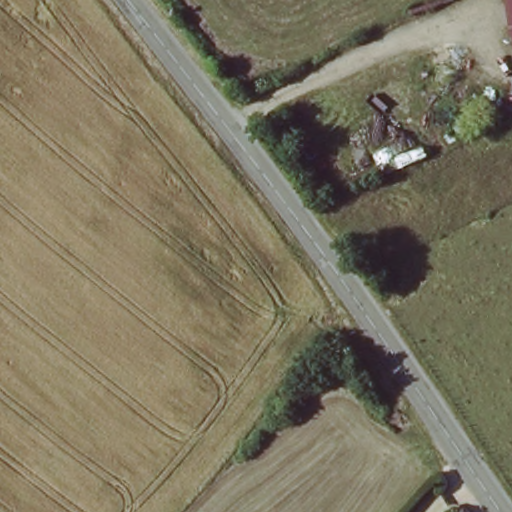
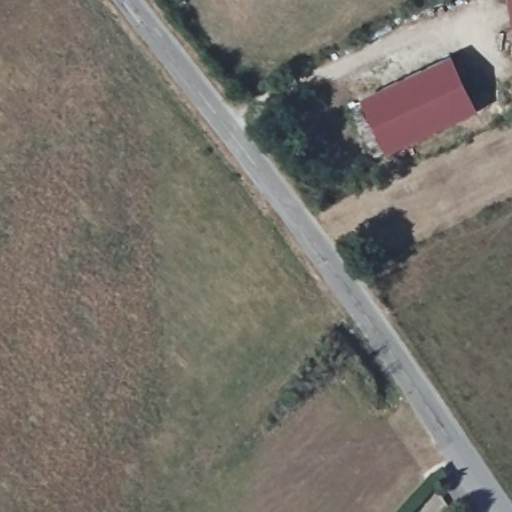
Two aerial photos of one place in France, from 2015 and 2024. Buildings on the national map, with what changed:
unchanged [(506,0),(512,0),(512,23),(506,0)]
new [(453,56),(478,112),(386,156),(360,99),(453,56)]

